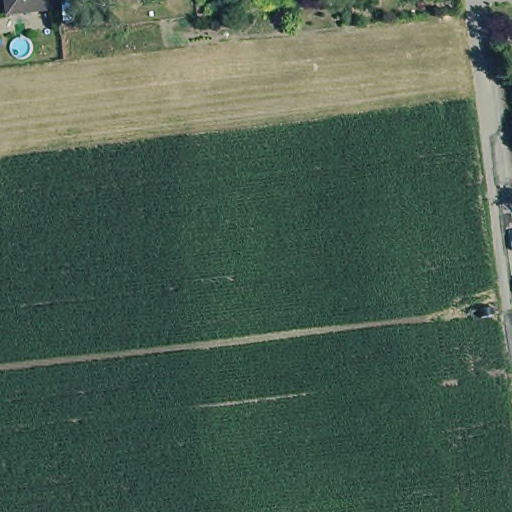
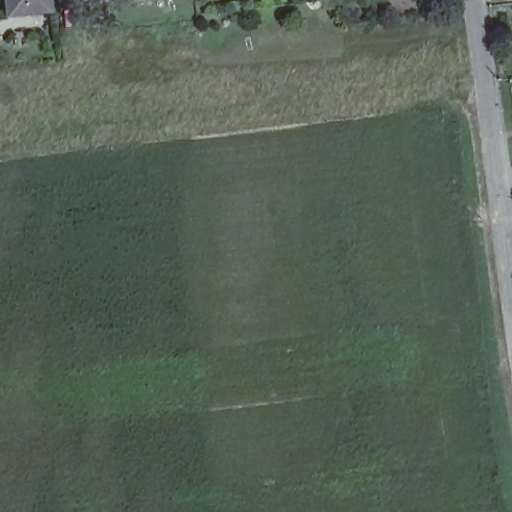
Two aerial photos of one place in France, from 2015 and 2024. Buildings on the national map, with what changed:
unchanged [(13,9),(12,0),(55,0),(55,4),(13,9)]

